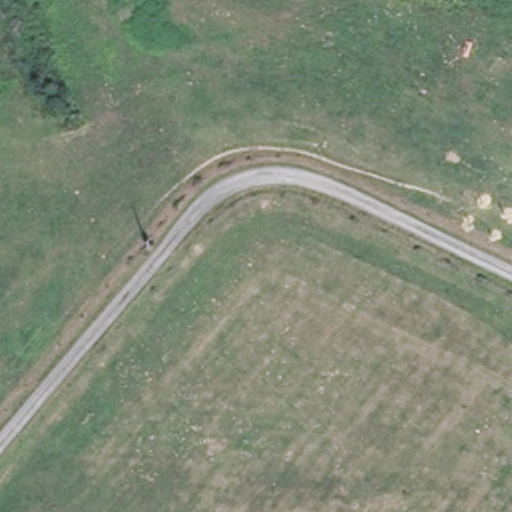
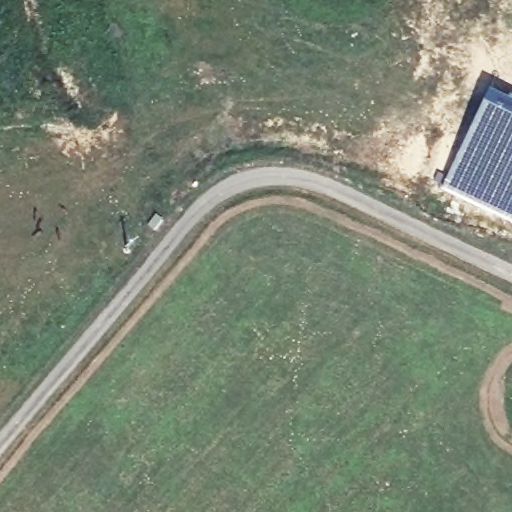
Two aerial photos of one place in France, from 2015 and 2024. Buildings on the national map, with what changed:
new [(469,120),(487,94),(512,105),(512,222),(477,206),(439,186),(469,120)]

